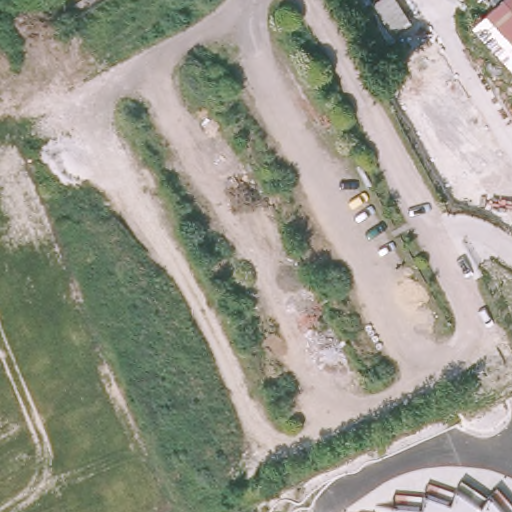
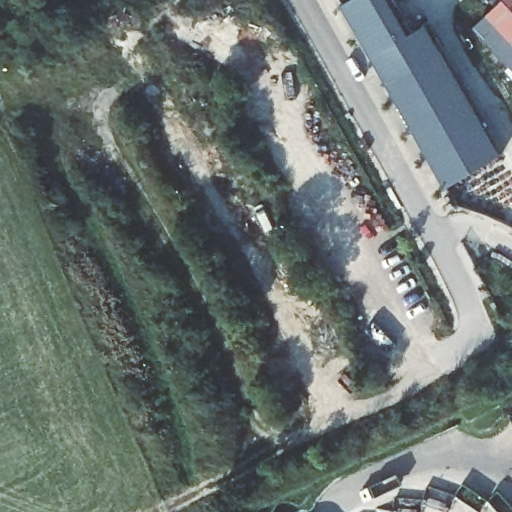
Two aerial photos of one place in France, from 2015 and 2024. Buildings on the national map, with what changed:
new [(396,0),(412,31),(427,21),(442,50),(501,154),(496,157),(503,172),(461,195),(454,181),(446,186),(346,0),(396,0)]
unchanged [(490,16),(498,9),(489,0),(512,0),(512,41),(490,16)]
new [(490,16),(512,41),(512,70),(474,29),(490,16)]

